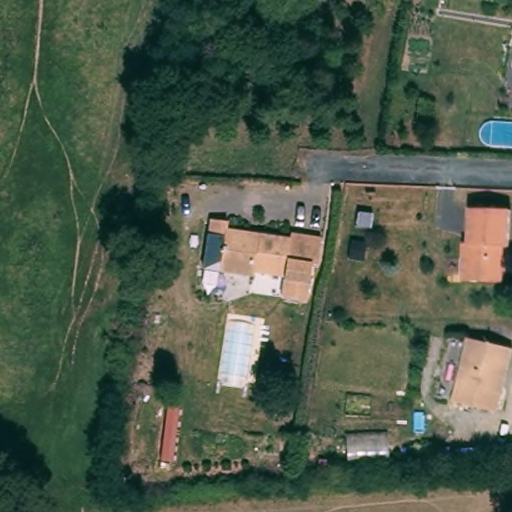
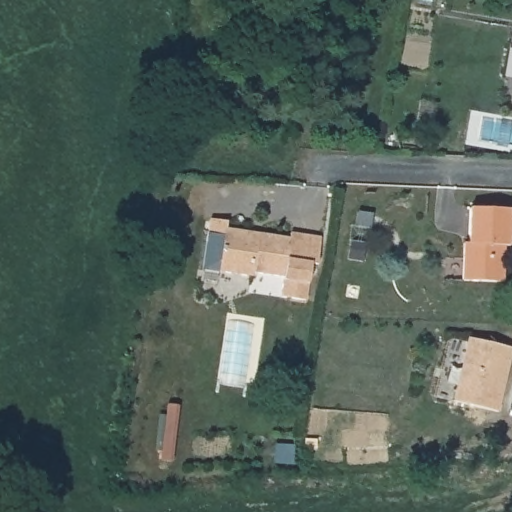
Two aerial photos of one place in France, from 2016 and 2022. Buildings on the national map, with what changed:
unchanged [(503,282),(462,280),(464,243),(469,243),(471,207),(511,209),(510,246),(505,246),(505,258),(503,282)]
unchanged [(228,221),(227,228),(292,238),(292,233),(311,235),(307,263),(312,263),(307,300),(282,296),(286,276),(255,272),(255,275),(204,268),(211,218),(228,221)]
unchanged [(512,354),(498,411),(454,401),(469,337),(512,348),(512,354)]

